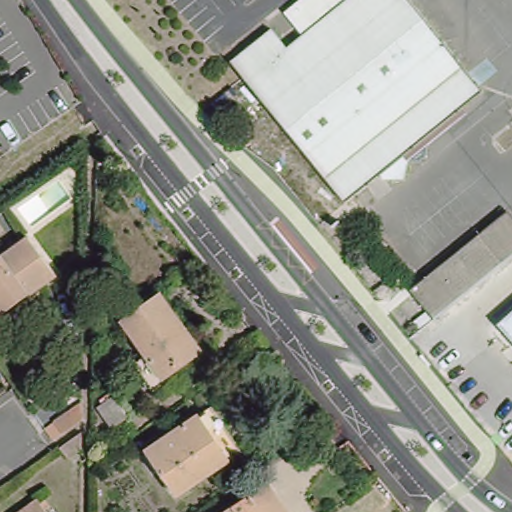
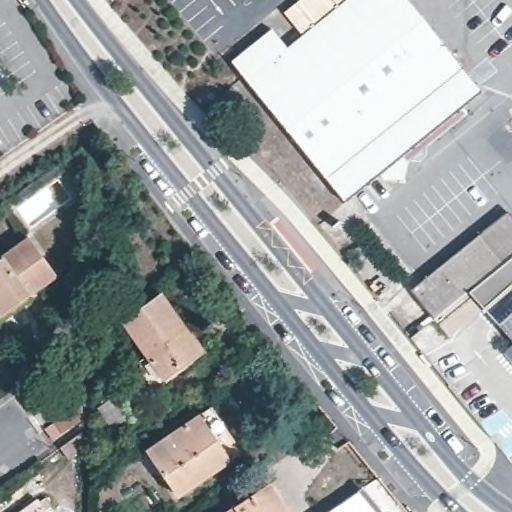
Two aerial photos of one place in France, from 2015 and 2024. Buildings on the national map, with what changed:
unchanged [(243,56),(275,30),(291,49),(352,0),(412,0),(487,91),(349,203),(235,63),(243,56)]
unchanged [(509,213),(512,217),(512,257),(435,319),(412,290),(509,213)]
unchanged [(0,263),(33,239),(61,278),(36,296),(5,319),(0,312),(0,263)]
unchanged [(163,380),(123,324),(161,295),(203,351),(163,380)]
unchanged [(509,342),(498,330),(512,319),(512,346),(509,342)]
unchanged [(129,418),(113,429),(99,409),(116,397),(129,418)]
unchanged [(68,413),(83,413),(83,419),(62,434),(54,423),(68,413)]
unchanged [(138,459),(191,423),(202,415),(231,459),(221,466),(167,502),(138,459)]
unchanged [(61,449),(83,433),(83,451),(69,460),(61,449)]
unchanged [(289,512),(229,512),(269,485),(289,512)]
new [(361,487),(382,512),(325,512),(361,487)]
unchanged [(38,504),(40,508),(46,503),(52,511),(50,512),(28,512),(38,504)]

